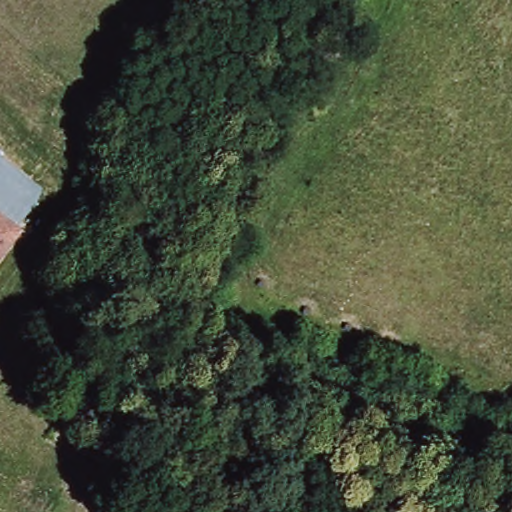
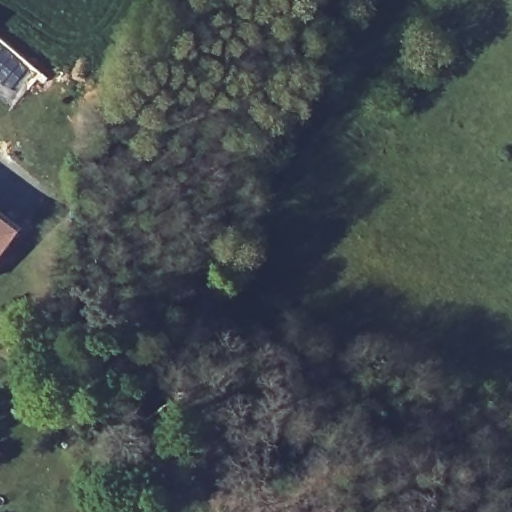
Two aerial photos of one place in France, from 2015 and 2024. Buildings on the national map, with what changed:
new [(10,99),(0,91),(0,38),(35,70),(10,99)]
unchanged [(0,261),(0,209),(27,228),(0,261)]

